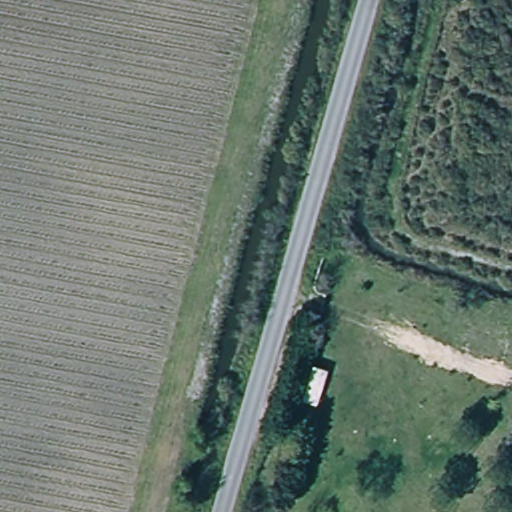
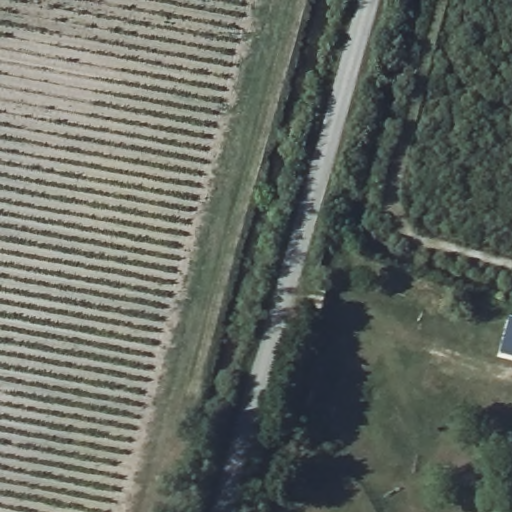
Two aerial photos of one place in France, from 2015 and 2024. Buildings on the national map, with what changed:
new [(512,356),(500,354),(509,318),(512,318),(512,356)]

